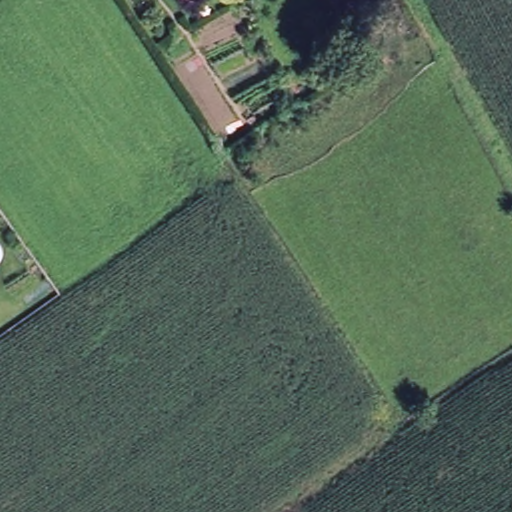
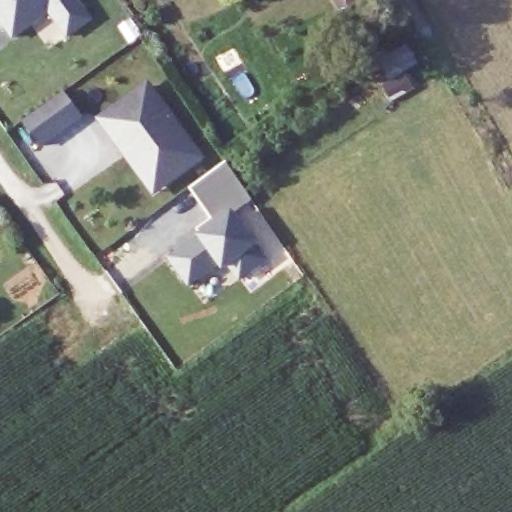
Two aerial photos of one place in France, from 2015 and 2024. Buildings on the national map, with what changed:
new [(12,39),(0,22),(0,0),(78,0),(91,20),(66,38),(48,14),(12,39)]
new [(362,2),(361,0),(367,0),(362,2)]
new [(149,82),(194,146),(159,171),(114,108),(149,82)]
new [(24,121),(41,110),(44,107),(48,105),(65,92),(83,117),(59,135),(42,146),(24,121)]
new [(159,171),(194,146),(201,155),(154,189),(102,116),(114,108),(159,171)]
new [(234,211),(233,210),(200,234),(196,229),(210,218),(190,189),(225,162),(252,200),(234,211)]
new [(226,266),(221,270),(218,265),(188,285),(167,257),(233,210),(268,260),(238,280),(226,266)]

